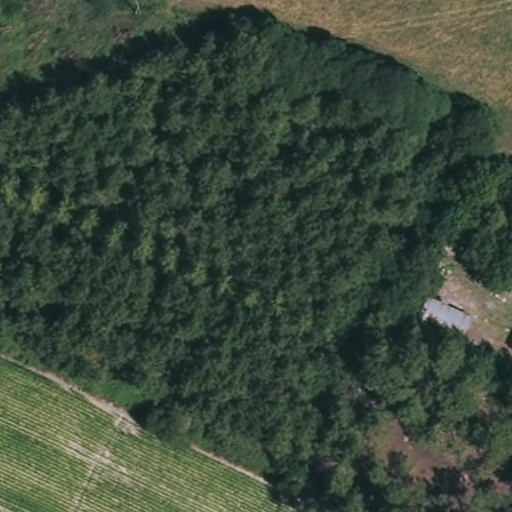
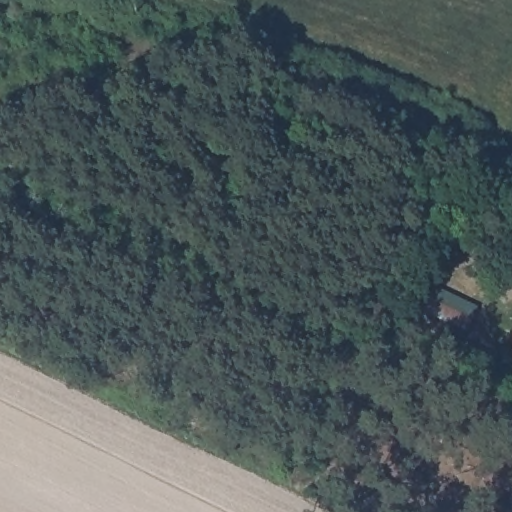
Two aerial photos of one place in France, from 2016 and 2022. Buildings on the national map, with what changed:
unchanged [(512,273),(512,290),(505,287),(512,273)]
unchanged [(462,349),(413,327),(428,297),(476,320),(462,349)]

